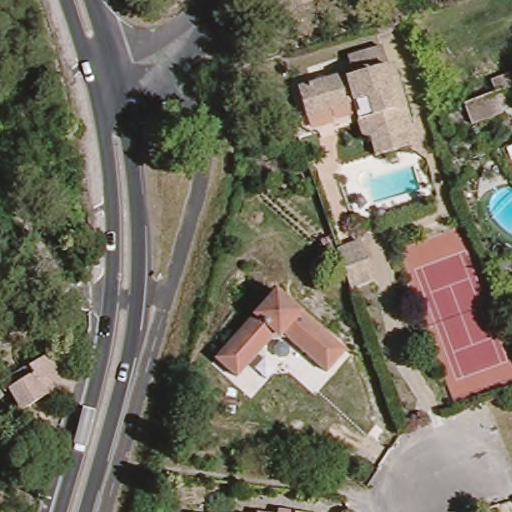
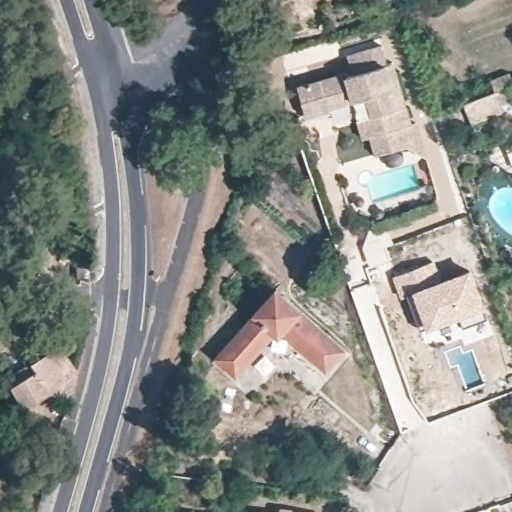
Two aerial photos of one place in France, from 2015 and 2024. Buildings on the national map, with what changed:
unchanged [(377,137),(371,139),(366,124),(361,103),(315,117),(306,87),(354,72),(355,76),(361,73),(356,56),(389,46),(394,63),(398,62),(416,125),(410,127),(415,146),(390,153),(383,155),(377,137)]
unchanged [(47,120),(22,122),(20,105),(46,103),(47,120)]
unchanged [(361,241),(376,285),(347,294),(332,251),(361,241)]
new [(434,261),(442,279),(470,269),(485,307),(482,308),(485,317),(463,325),(459,317),(426,330),(412,294),(401,299),(393,277),(434,261)]
unchanged [(241,382),(221,363),(279,295),(349,355),(331,374),(286,338),(278,339),(241,382)]
unchanged [(8,393),(0,398),(0,383),(57,348),(75,375),(69,401),(46,395),(20,411),(8,393)]
unchanged [(3,422),(0,424),(0,416),(3,422)]

